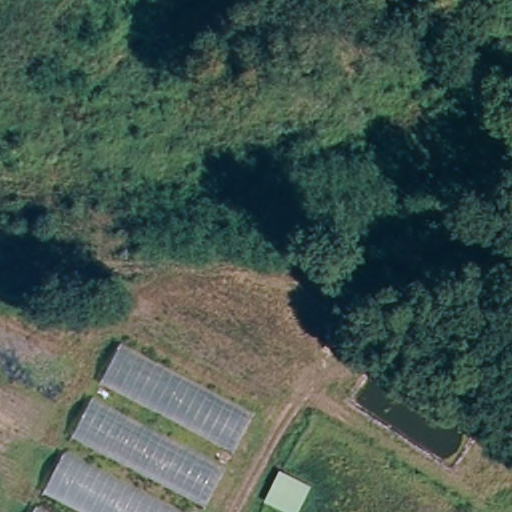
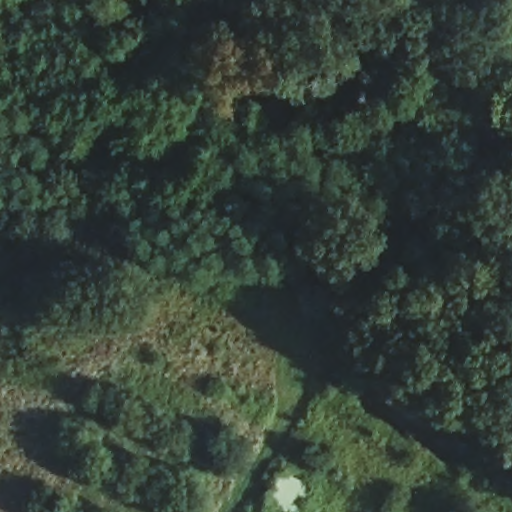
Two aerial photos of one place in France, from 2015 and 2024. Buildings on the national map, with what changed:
demolished [(202,512),(35,512),(124,343),(252,416),(202,512)]
unchanged [(265,500),(281,470),(312,485),(297,512),(289,512),(265,500)]

